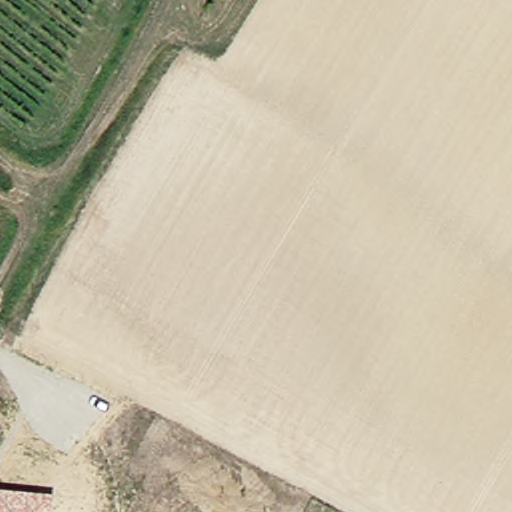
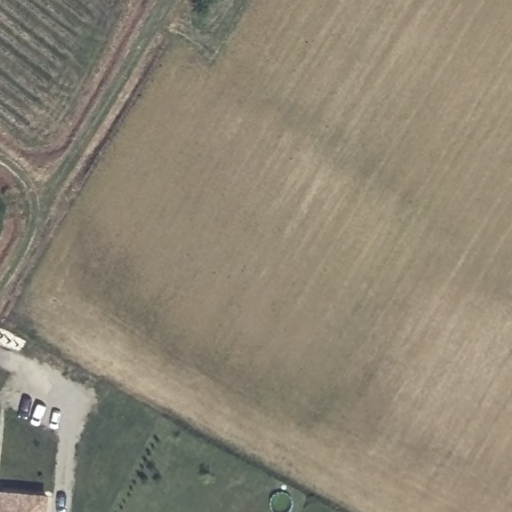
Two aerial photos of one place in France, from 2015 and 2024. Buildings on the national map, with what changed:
unchanged [(48,512),(0,512),(0,489),(50,493),(48,512)]

